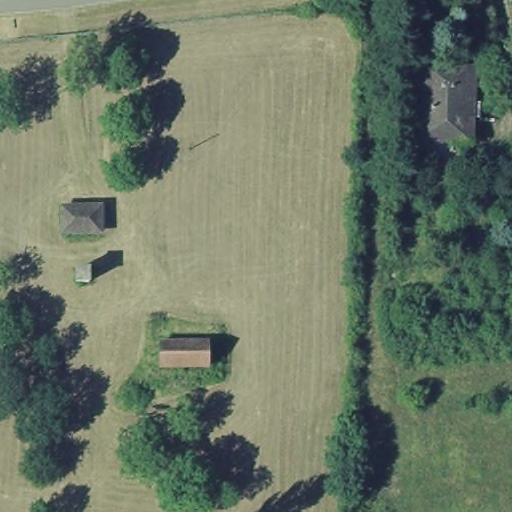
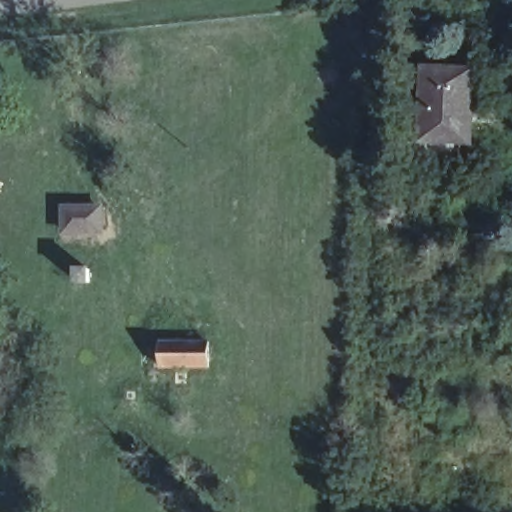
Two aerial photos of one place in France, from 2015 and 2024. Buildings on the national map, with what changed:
unchanged [(414,74),(466,76),(463,149),(412,146),(414,74)]
unchanged [(75,213),(100,213),(99,240),(75,239),(63,239),(63,213),(75,213)]
unchanged [(89,271),(88,282),(75,283),(75,270),(89,271)]
unchanged [(157,342),(194,342),(203,342),(202,367),(194,367),(156,368),(154,368),(154,342),(157,342)]

